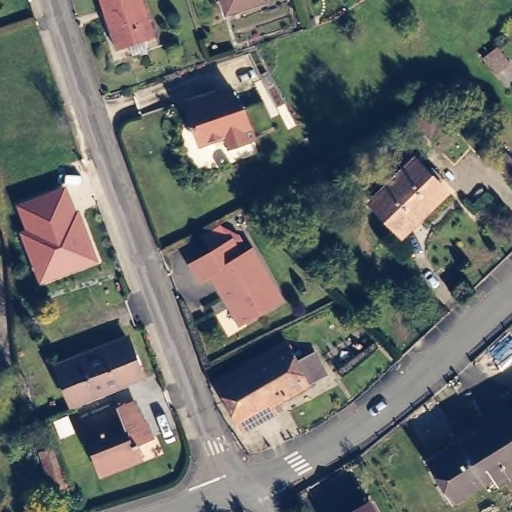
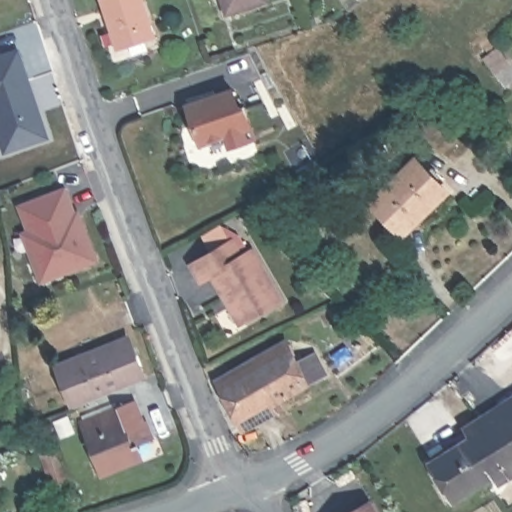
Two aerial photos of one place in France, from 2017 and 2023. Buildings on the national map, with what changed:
unchanged [(145,40),(148,50),(133,55),(130,45),(117,50),(101,0),(144,0),(156,36),(145,40)]
unchanged [(224,12),(219,0),(261,0),(224,12)]
new [(0,143),(0,55),(19,49),(50,137),(4,153),(0,143)]
unchanged [(231,85),(238,104),(242,102),(252,134),(228,141),(224,130),(199,139),(186,100),(231,85)]
unchanged [(511,174),(492,153),(502,145),(512,155),(512,172),(511,174)]
unchanged [(373,205),(417,164),(418,162),(447,193),(404,236),(395,228),(373,205)]
unchanged [(40,283),(20,230),(26,229),(17,205),(67,185),(76,211),(79,210),(98,260),(40,283)]
unchanged [(222,242),(231,256),(241,250),(270,299),(233,320),(221,301),(217,302),(202,275),(191,280),(182,263),(222,242)]
unchanged [(76,405),(61,366),(132,338),(147,378),(76,405)]
unchanged [(257,370),(297,347),(305,363),(319,356),(332,378),(280,407),(257,370)]
unchanged [(245,427),(223,390),(257,370),(280,407),(245,427)]
unchanged [(138,402),(144,417),(140,420),(142,423),(147,422),(154,439),(138,445),(139,448),(136,450),(139,459),(105,473),(85,423),(138,402)]
unchanged [(500,477),(496,471),(453,497),(430,458),(512,408),(512,470),(500,477)]
unchanged [(50,440),(66,488),(55,492),(37,445),(50,440)]
unchanged [(371,496),(379,512),(343,512),(371,496)]
unchanged [(0,505),(2,512),(0,512),(0,505)]

